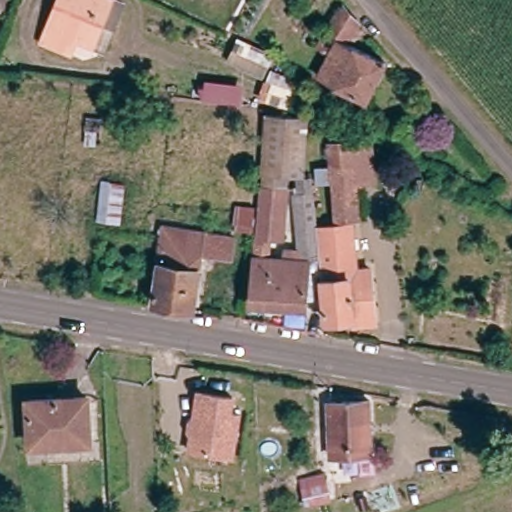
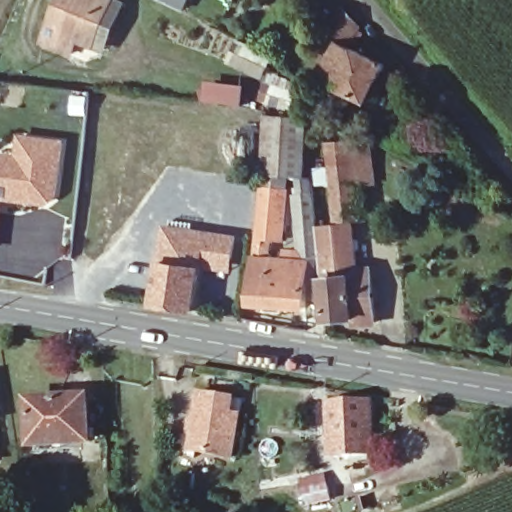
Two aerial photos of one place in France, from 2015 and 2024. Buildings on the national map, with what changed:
unchanged [(87,45),(71,39),(65,53),(38,42),(55,0),(104,0),(87,45)]
unchanged [(346,46),(384,64),(366,101),(317,77),(333,43),(322,36),(340,8),(342,10),(358,28),(346,46)]
unchanged [(308,119),(302,177),(288,177),(287,192),(283,239),(272,238),(271,256),(283,258),(283,249),(301,250),(307,261),(304,308),(250,305),(259,189),(265,115),(308,117),(308,119)]
demolished [(99,142),(83,141),(86,116),(101,118),(99,142)]
new [(64,139),(58,198),(46,207),(2,201),(0,222),(0,152),(15,154),(18,133),(64,139)]
unchanged [(374,180),(354,183),(357,214),(336,217),(329,144),(369,140),(374,180)]
unchanged [(316,239),(298,241),(293,195),(298,194),(296,178),(312,177),(316,239)]
unchanged [(252,221),(251,233),(233,231),(236,205),(254,207),(252,221)]
unchanged [(356,269),(369,268),(374,315),(324,322),(316,229),(352,224),(356,269)]
unchanged [(230,255),(200,250),(192,309),(165,305),(152,303),(162,228),(232,238),(230,255)]
unchanged [(187,452),(189,434),(184,431),(186,422),(193,419),(196,391),(235,396),(234,412),(241,413),(235,462),(187,452)]
unchanged [(90,442),(31,445),(29,400),(87,397),(90,442)]
unchanged [(372,454),(324,457),(321,405),(368,402),(372,454)]
unchanged [(329,500),(305,504),(303,490),(326,486),(329,500)]

